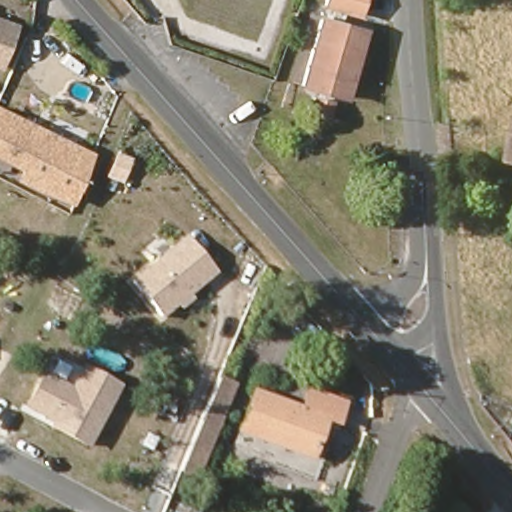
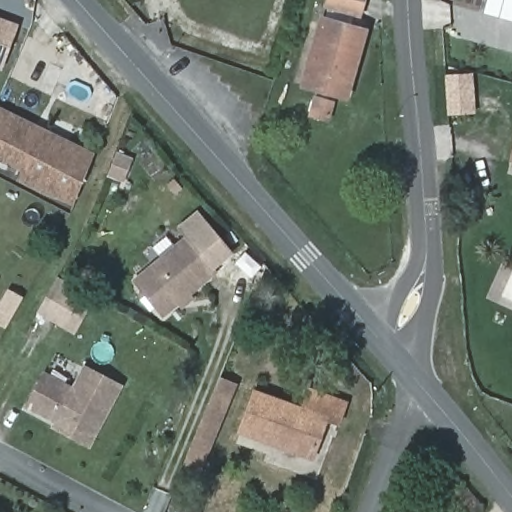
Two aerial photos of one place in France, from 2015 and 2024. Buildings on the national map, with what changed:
unchanged [(327,3),(328,0),(366,0),(362,14),(347,10),(330,4),(327,3)]
new [(512,22),(483,14),(486,0),(512,0),(512,22)]
unchanged [(351,99),(304,84),(322,25),(327,26),(330,14),(347,20),(344,32),(368,39),(351,99)]
unchanged [(17,25),(2,66),(0,65),(0,18),(17,25)]
new [(445,75),(474,74),(476,115),(448,116),(445,75)]
unchanged [(335,105),(329,120),(316,115),(321,100),(335,105)]
unchanged [(88,156),(67,199),(0,167),(0,114),(88,156)]
new [(512,151),(512,161),(510,160),(512,151)]
unchanged [(192,295),(196,299),(181,311),(177,306),(163,318),(130,280),(187,234),(219,272),(192,295)]
unchanged [(90,451),(48,428),(52,421),(24,406),(41,370),(74,386),(84,365),(124,385),(90,451)]
unchanged [(201,465),(185,458),(194,435),(215,385),(231,391),(201,465)]
unchanged [(312,453),(242,430),(256,390),(302,407),(309,387),(344,400),(337,419),(325,415),(312,453)]

